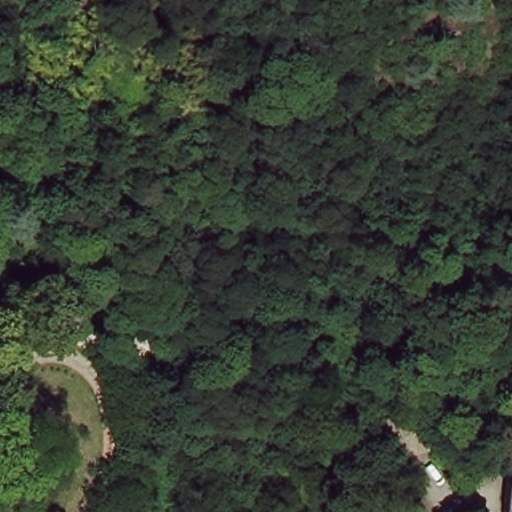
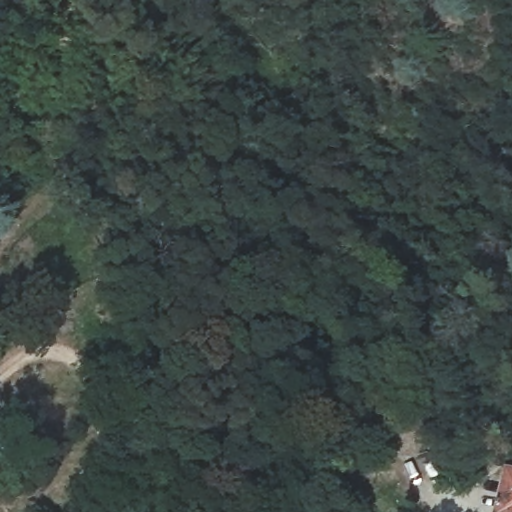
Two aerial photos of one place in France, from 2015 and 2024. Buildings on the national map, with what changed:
unchanged [(421,408),(429,442),(395,447),(387,413),(421,408)]
unchanged [(502,512),(512,463),(512,512),(502,512)]

